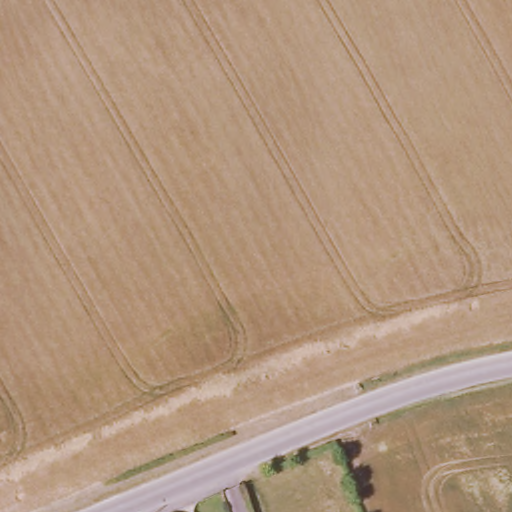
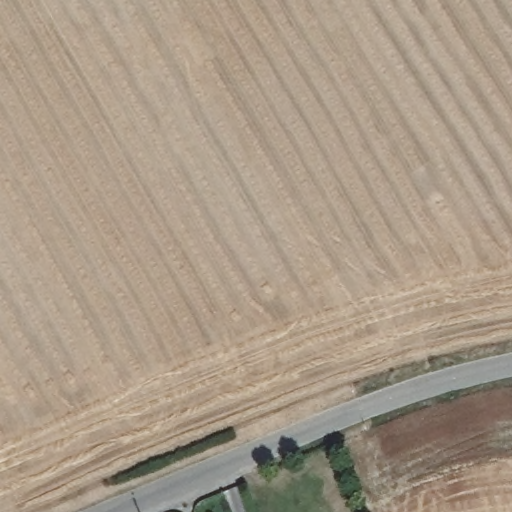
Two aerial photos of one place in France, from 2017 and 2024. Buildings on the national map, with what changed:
[]

